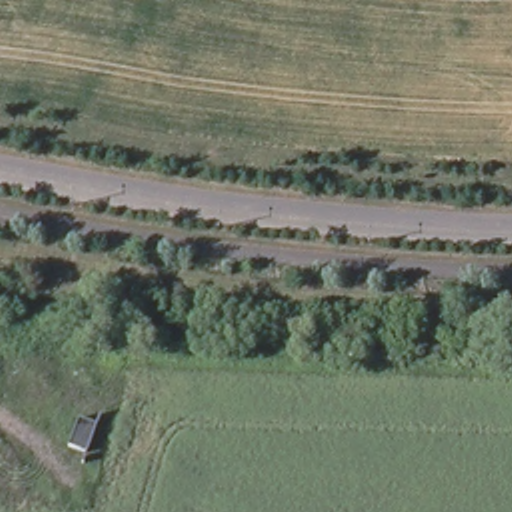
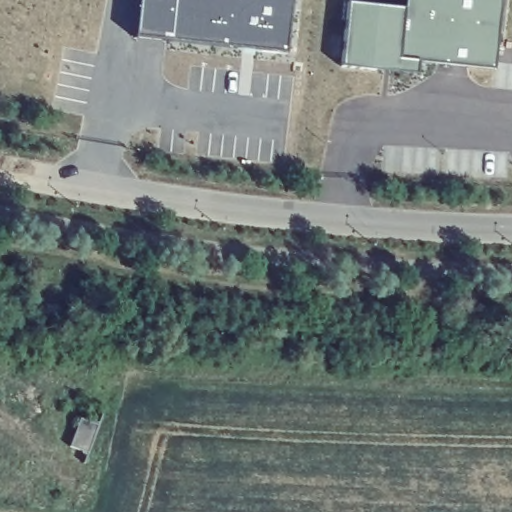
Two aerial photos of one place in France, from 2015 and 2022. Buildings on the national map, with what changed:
new [(290,53),(141,37),(145,0),(294,0),(290,53)]
new [(492,70),(418,61),(417,74),(342,65),(349,3),(405,10),(406,0),(500,0),(492,70)]
new [(97,424),(89,452),(72,447),(80,420),(97,424)]

